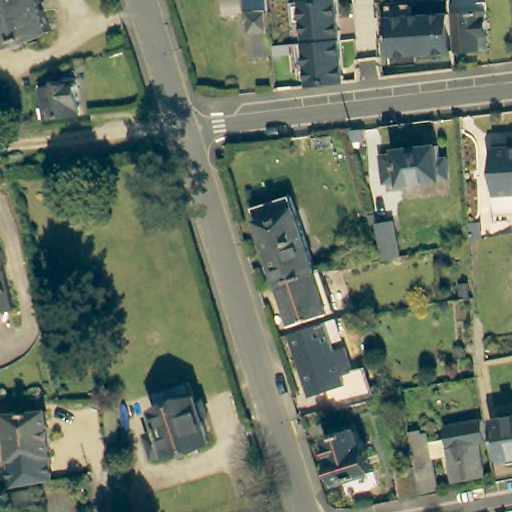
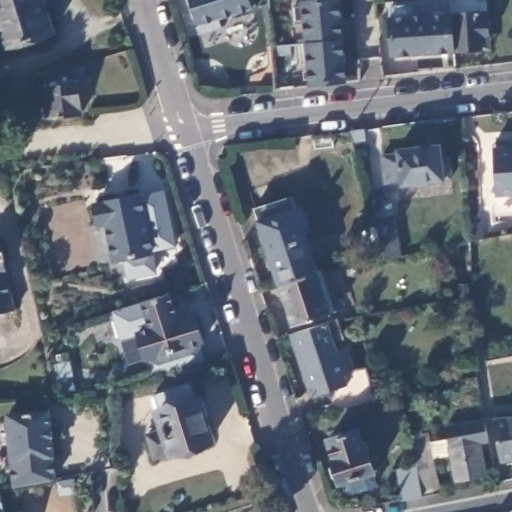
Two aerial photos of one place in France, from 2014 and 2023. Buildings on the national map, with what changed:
unchanged [(9,46),(4,28),(0,29),(0,14),(0,0),(48,0),(56,32),(9,46)]
new [(218,20),(220,29),(199,35),(197,26),(190,0),(251,0),(254,9),(218,20)]
demolished [(253,59),(250,31),(244,33),(243,21),(248,20),(247,14),(224,15),(223,0),(267,0),(271,58),(253,59)]
unchanged [(308,86),(306,64),(302,64),(294,65),(292,44),(289,0),(336,0),(339,40),(342,82),(325,84),(308,86)]
unchanged [(440,59),(415,60),(416,68),(386,70),(381,0),(449,0),(449,15),(452,52),(440,53),(440,59)]
unchanged [(479,13),(480,23),(489,21),(490,35),(481,36),(482,49),(459,50),(456,14),(479,13)]
unchanged [(43,88),(59,85),(59,80),(77,78),(80,114),(46,119),(43,88)]
unchanged [(365,129),(366,139),(353,141),(353,140),(351,133),(350,130),(365,129)]
unchanged [(331,135),(333,147),(315,149),(312,138),(331,135)]
unchanged [(498,219),(493,153),(497,153),(497,144),(512,142),(512,218),(498,219)]
unchanged [(398,153),(398,149),(439,144),(441,159),(448,159),(450,178),(402,185),(401,179),(385,181),(382,156),(398,153)]
new [(107,196),(109,202),(142,194),(142,199),(162,194),(173,246),(153,250),(154,255),(148,257),(152,273),(127,278),(123,262),(110,264),(101,223),(92,224),(89,199),(107,196)]
unchanged [(254,208),(291,196),(317,274),(279,284),(254,208)]
unchanged [(375,228),(370,229),(368,219),(374,219),(375,228)]
unchanged [(375,228),(393,224),(395,242),(398,260),(383,264),(379,244),(375,228)]
unchanged [(4,249),(6,260),(2,261),(13,312),(0,314),(0,242),(1,249),(4,249)]
unchanged [(317,274),(319,273),(323,272),(336,312),(292,325),(279,284),(317,274)]
new [(141,304),(171,295),(178,320),(196,315),(205,344),(197,347),(203,362),(149,378),(143,363),(137,339),(118,342),(110,313),(141,304)]
unchanged [(336,320),(353,371),(364,367),(373,396),(374,399),(339,409),(338,407),(332,388),(310,394),(291,334),(336,320)]
unchanged [(177,458),(176,457),(159,462),(151,463),(141,434),(155,430),(150,412),(155,409),(152,401),(160,399),(194,386),(200,403),(201,402),(216,445),(177,458)]
unchanged [(401,389),(401,390),(402,396),(393,398),(392,391),(401,389)]
unchanged [(47,411),(53,477),(15,481),(8,414),(47,411)]
unchanged [(499,460),(494,419),(512,416),(512,458),(499,460)]
unchanged [(416,465),(410,433),(416,430),(418,436),(426,434),(428,443),(446,439),(444,427),(485,419),(487,430),(490,442),(479,443),(484,476),(454,481),(450,457),(433,459),(439,491),(422,494),(401,499),(395,469),(416,465)]
unchanged [(344,439),(340,426),(355,421),(359,432),(357,434),(363,454),(365,454),(373,476),(339,488),(332,464),(334,464),(326,444),(344,439)]
demolished [(36,489),(39,504),(18,508),(16,493),(36,489)]
new [(4,512),(0,512),(0,491),(4,512)]
unchanged [(280,512),(272,512),(279,509),(280,512)]

